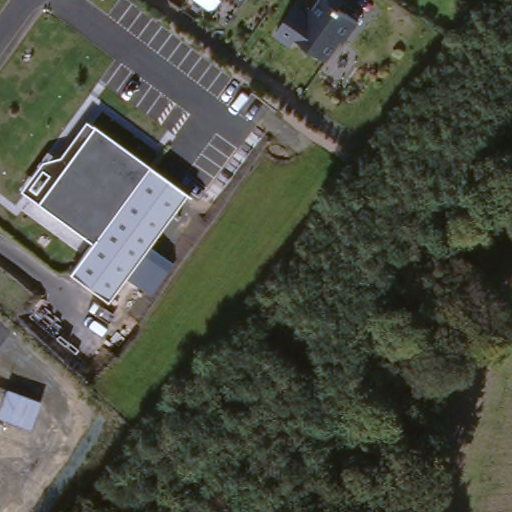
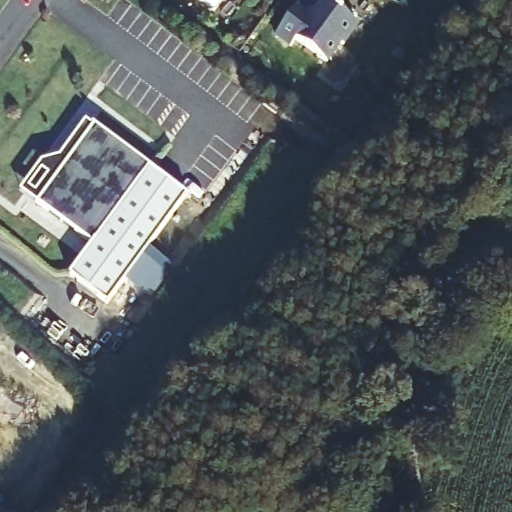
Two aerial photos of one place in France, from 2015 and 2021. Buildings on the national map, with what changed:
unchanged [(204,0),(216,0),(212,5),(204,0)]
unchanged [(295,4),(310,14),(321,0),(343,0),(338,7),(357,20),(343,41),(340,39),(327,59),(295,37),(290,44),(275,33),(295,4)]
unchanged [(149,243),(172,261),(150,293),(126,276),(108,301),(70,273),(92,241),(21,190),(41,160),(60,155),(84,119),(188,194),(149,243)]
demolished [(0,393),(2,386),(37,399),(27,427),(0,417),(0,393)]

